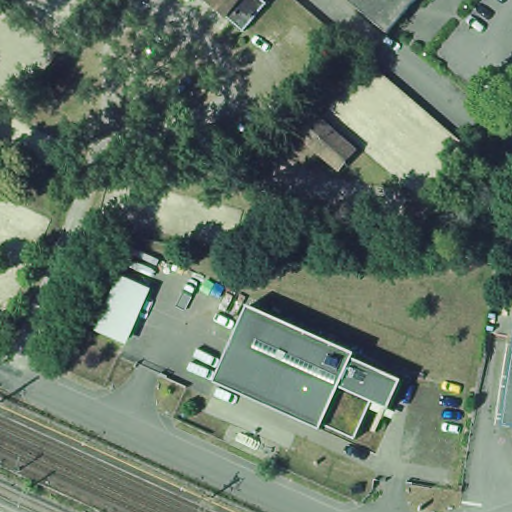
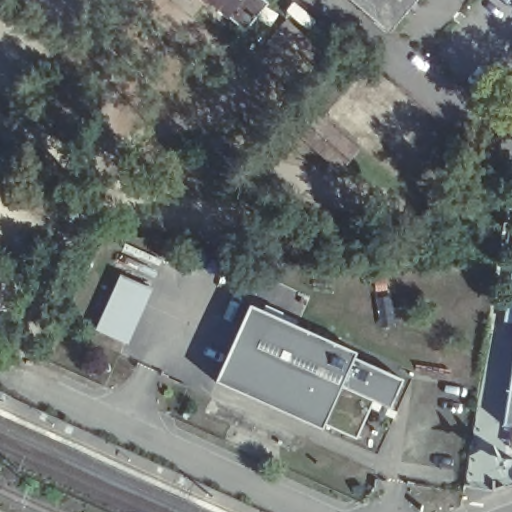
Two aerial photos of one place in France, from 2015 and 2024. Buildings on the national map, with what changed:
unchanged [(250,31),(233,17),(213,0),(269,0),(273,4),(250,31)]
unchanged [(394,34),(354,0),(423,0),(394,34)]
unchanged [(350,150),(335,166),(290,128),(304,112),(350,150)]
unchanged [(155,290),(130,346),(97,330),(122,275),(155,290)]
unchanged [(357,439),(322,424),(322,426),(324,427),(323,430),(215,382),(250,305),(357,353),(356,356),(353,355),(352,357),(403,380),(390,410),(397,412),(393,418),(370,408),(357,439)]
unchanged [(512,331),(512,422),(498,420),(512,331)]

